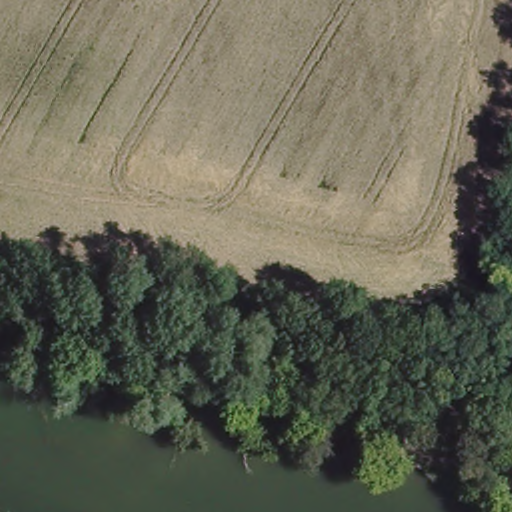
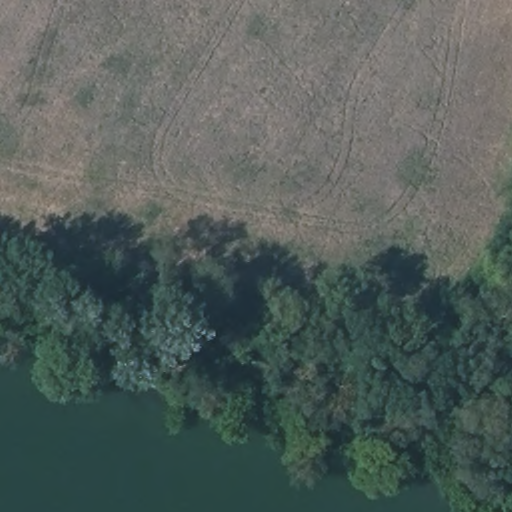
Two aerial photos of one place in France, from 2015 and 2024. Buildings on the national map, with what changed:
unchanged [(467,335),(443,329),(449,306),(473,312),(467,335)]

